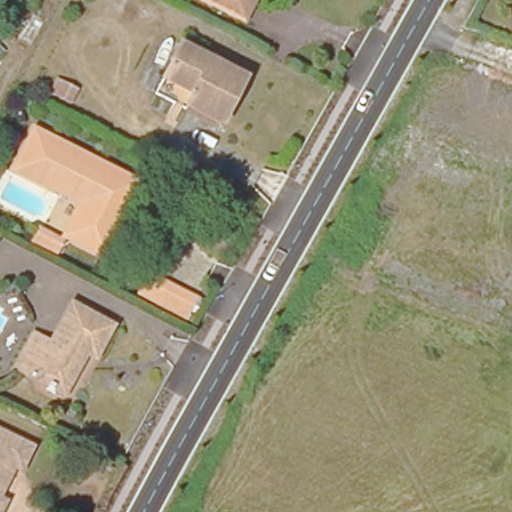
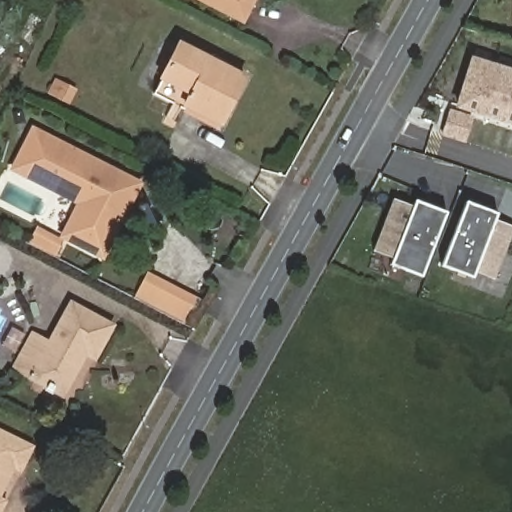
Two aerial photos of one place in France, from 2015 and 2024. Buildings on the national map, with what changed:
unchanged [(203,0),(249,0),(239,18),(203,0)]
unchanged [(188,98),(186,103),(159,90),(184,41),(247,73),(226,116),(188,98)]
new [(473,60),(512,72),(512,122),(458,105),(473,60)]
new [(450,111),(472,118),(464,141),(443,134),(450,111)]
unchanged [(145,182),(114,248),(74,229),(87,200),(23,167),(42,128),(145,182)]
new [(376,246),(393,203),(394,199),(412,206),(415,200),(429,205),(446,212),(423,274),(406,269),(391,263),(394,257),(375,250),(376,246)]
new [(475,269),(472,275),(458,269),(442,264),(465,200),(481,207),(495,212),(493,218),(512,224),(512,226),(511,229),(495,272),(493,276),(475,269)]
unchanged [(197,294),(187,315),(140,292),(150,271),(197,294)]
unchanged [(30,338),(46,344),(65,299),(108,316),(95,348),(86,345),(68,391),(17,371),(30,338)]
unchanged [(22,457),(15,455),(1,485),(10,490),(0,512),(0,418),(33,431),(22,457)]

